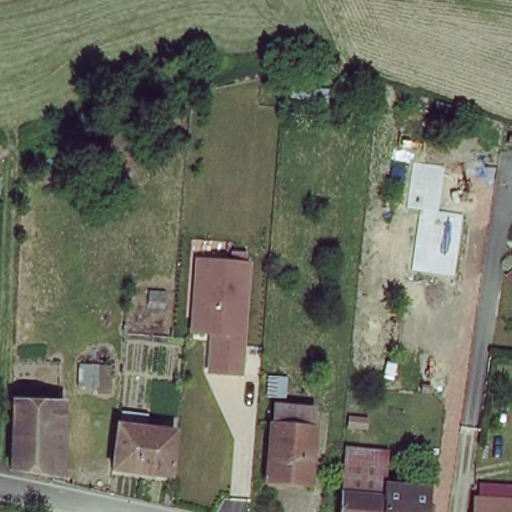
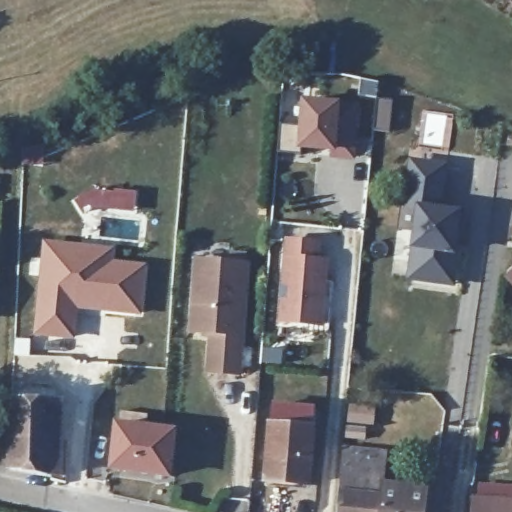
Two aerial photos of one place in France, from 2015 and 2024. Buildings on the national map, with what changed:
new [(335,152),(298,149),(303,99),(343,102),(362,104),(356,161),(331,159),(335,152)]
unchanged [(449,104),(442,126),(428,121),(435,100),(449,104)]
new [(442,166),(437,210),(460,213),(451,282),(408,277),(417,209),(405,207),(411,162),(442,166)]
new [(93,187),(136,191),(134,212),(105,209),(93,211),(87,191),(93,187)]
new [(41,239),(116,247),(116,261),(148,263),(143,317),(79,311),(75,340),(32,336),(41,239)]
new [(286,239),(323,242),(323,258),(331,258),(324,327),(279,323),(286,239)]
unchanged [(187,333),(192,258),(251,262),(244,378),(205,376),(206,335),(187,333)]
unchanged [(19,398),(62,402),(59,475),(20,472),(18,472),(19,398)]
unchanged [(310,429),(312,431),(306,484),(264,480),(269,427),(272,426),(274,409),(274,407),(309,407),(309,412),(310,429)]
unchanged [(167,475),(110,468),(114,426),(173,432),(167,475)]
unchanged [(347,478),(348,447),(390,451),(389,477),(398,477),(397,487),(397,498),(413,500),(428,501),(427,512),(343,512),(346,483),(347,478)]
unchanged [(512,502),(512,512),(471,512),(474,500),(512,502)]

